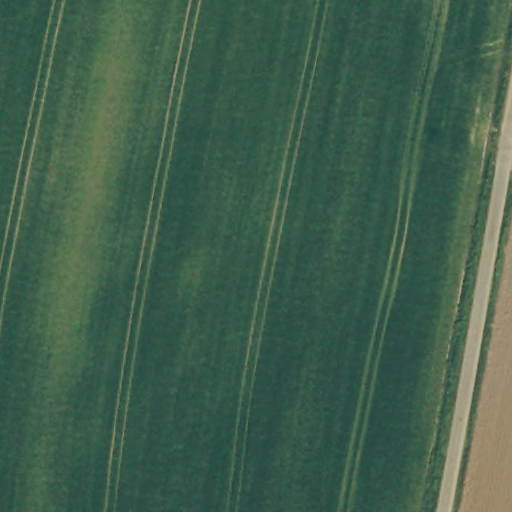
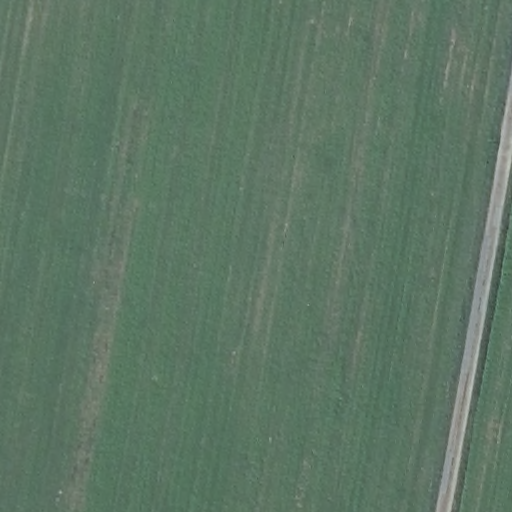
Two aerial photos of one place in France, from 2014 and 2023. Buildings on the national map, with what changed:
[]

